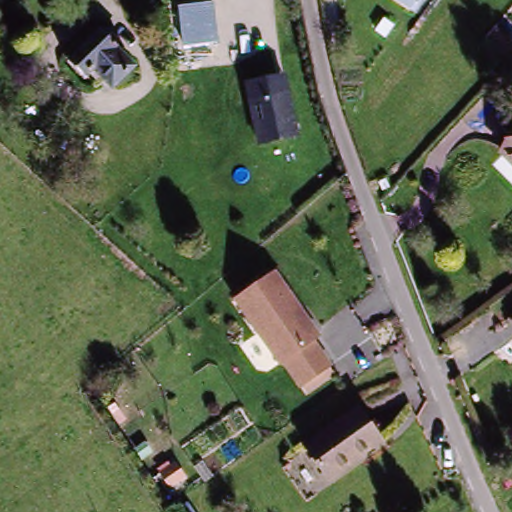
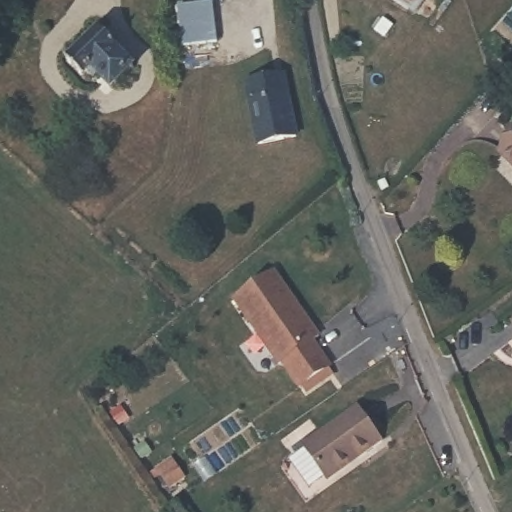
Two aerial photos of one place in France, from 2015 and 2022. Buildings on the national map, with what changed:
unchanged [(178,5),(210,0),(214,0),(217,40),(182,45),(178,5)]
unchanged [(415,16),(410,16),(385,42),(373,32),(382,16),(389,21),(399,7),(391,0),(427,0),(415,16)]
unchanged [(129,62),(100,92),(85,78),(81,82),(64,65),(96,31),(129,62)]
unchanged [(298,90),(305,136),(265,142),(257,98),(298,90)]
unchanged [(498,160),(512,144),(512,172),(498,160)]
unchanged [(309,388),(289,364),(286,366),(240,302),(279,275),(325,337),(319,342),(337,367),(335,367),(340,375),(313,395),(309,388)]
unchanged [(512,325),(512,330),(510,327),(512,325)]
unchanged [(359,412),(382,446),(327,485),(304,451),(359,412)]
unchanged [(175,487),(163,496),(155,483),(167,475),(175,487)]

